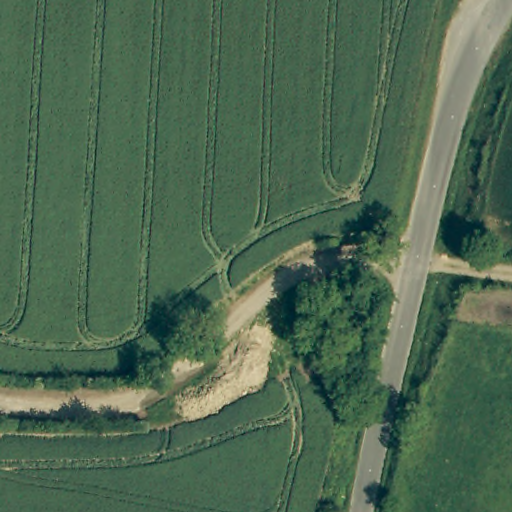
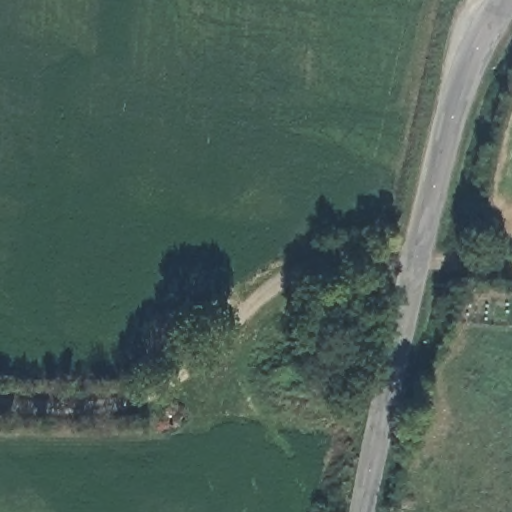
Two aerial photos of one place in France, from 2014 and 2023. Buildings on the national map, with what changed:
[]

